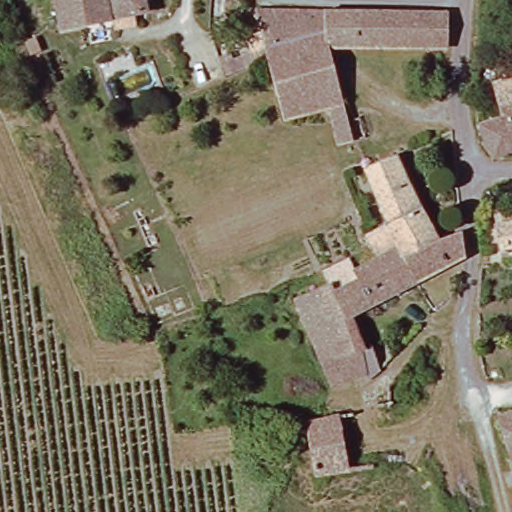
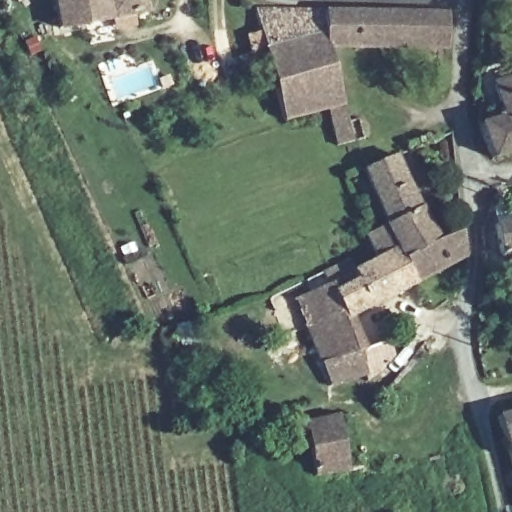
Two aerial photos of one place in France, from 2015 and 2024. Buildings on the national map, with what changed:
unchanged [(59,30),(52,0),(145,0),(147,12),(59,30)]
unchanged [(267,47),(257,11),(323,12),(330,49),(267,47)]
unchanged [(330,49),(323,12),(360,14),(360,50),(330,49)]
unchanged [(360,50),(360,14),(397,15),(398,50),(360,50)]
unchanged [(398,50),(397,15),(444,15),(445,51),(398,50)]
unchanged [(337,147),(330,112),(285,122),(270,62),(267,47),(330,49),(352,144),(337,147)]
unchanged [(488,161),(476,130),(498,122),(490,85),(512,78),(512,154),(488,161)]
unchanged [(367,235),(391,225),(363,170),(395,158),(434,244),(460,233),(460,234),(461,261),(461,262),(419,284),(402,249),(400,245),(375,256),(367,235)]
unchanged [(497,261),(496,255),(491,225),(512,221),(512,261),(497,261)]
unchanged [(321,365),(292,297),(326,285),(321,273),(347,261),(353,272),(402,249),(419,284),(351,319),(362,350),(374,349),(378,370),(367,382),(366,380),(331,387),(321,365)]
unchanged [(508,459),(493,413),(512,408),(512,458),(508,459)]
unchanged [(305,422),(355,412),(361,450),(372,446),(373,471),(313,480),(305,422)]
unchanged [(508,459),(512,458),(512,470),(508,459)]

